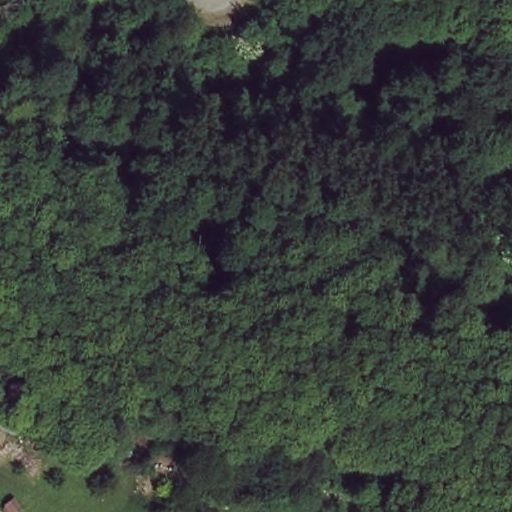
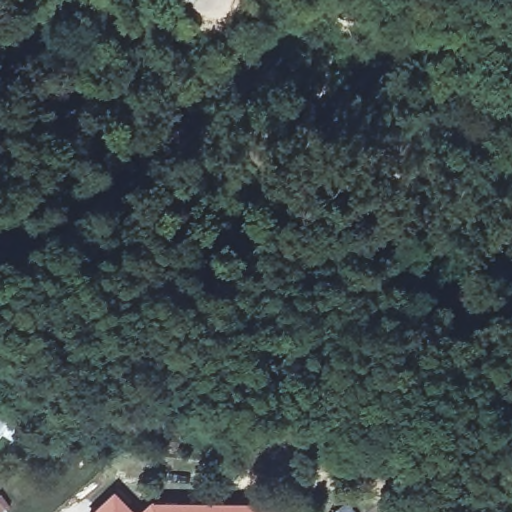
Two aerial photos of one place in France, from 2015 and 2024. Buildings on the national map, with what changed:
new [(133,512),(90,512),(111,490),(133,512)]
new [(355,512),(331,512),(345,500),(355,512)]
new [(238,502),(275,504),(275,512),(135,512),(148,501),(238,502)]

